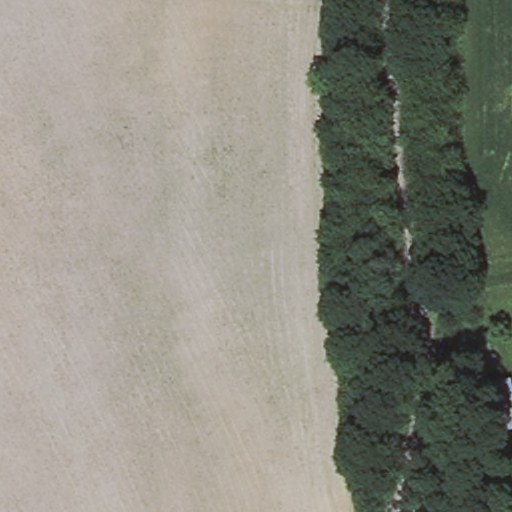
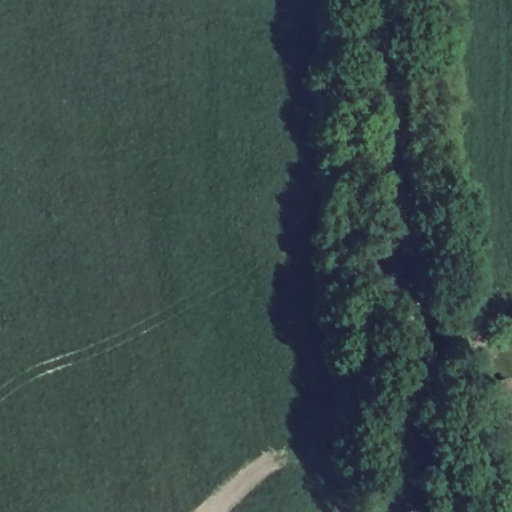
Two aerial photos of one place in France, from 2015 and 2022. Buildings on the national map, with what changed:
unchanged [(476,384),(512,380),(512,384),(512,426),(482,429),(476,384)]

